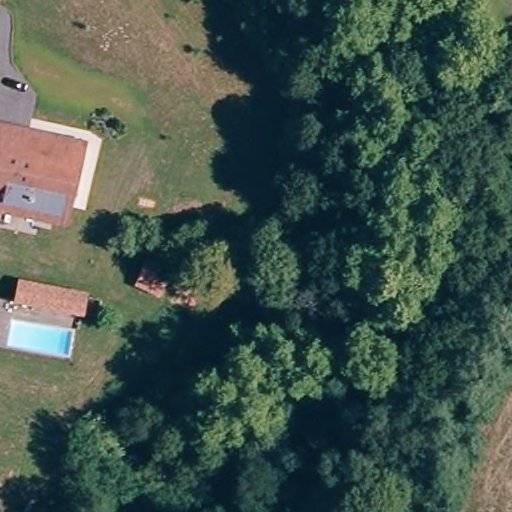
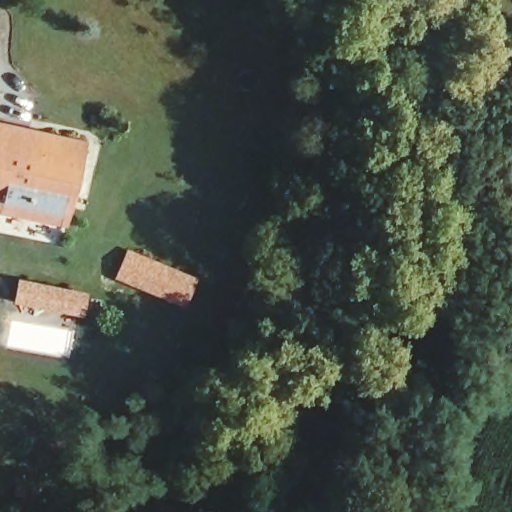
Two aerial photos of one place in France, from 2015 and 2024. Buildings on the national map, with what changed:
unchanged [(0,213),(0,124),(9,126),(86,141),(69,227),(0,213)]
new [(128,250),(197,280),(183,308),(116,280),(128,250)]
unchanged [(86,286),(83,307),(18,297),(20,277),(86,286)]

